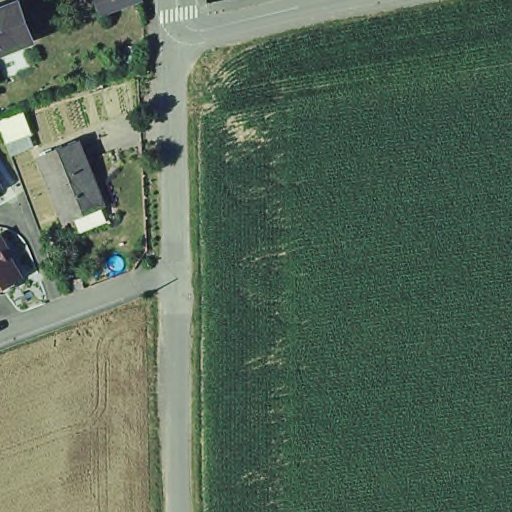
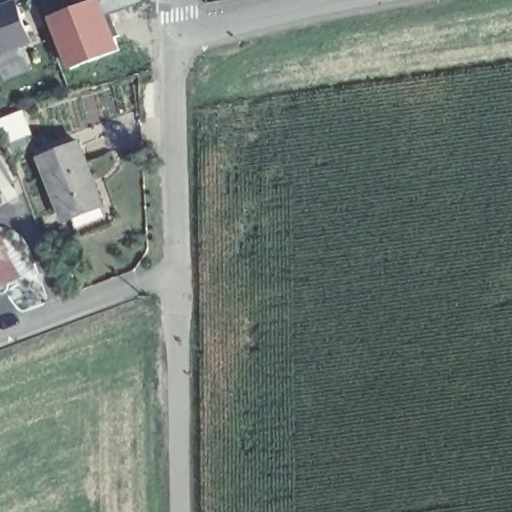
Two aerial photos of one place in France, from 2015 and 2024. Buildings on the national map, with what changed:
new [(97,19),(116,50),(62,67),(42,19),(82,0),(135,0),(137,3),(97,19)]
demolished [(97,19),(90,0),(135,0),(137,3),(97,19)]
unchanged [(13,9),(14,10),(18,21),(27,45),(0,56),(0,14),(13,9)]
unchanged [(23,111),(33,133),(28,135),(34,147),(11,156),(0,127),(0,120),(23,111)]
unchanged [(31,157),(70,142),(92,199),(95,205),(55,221),(53,214),(31,157)]
unchanged [(5,188),(0,192),(0,179),(5,188)]
unchanged [(20,277),(0,289),(0,243),(20,277)]

